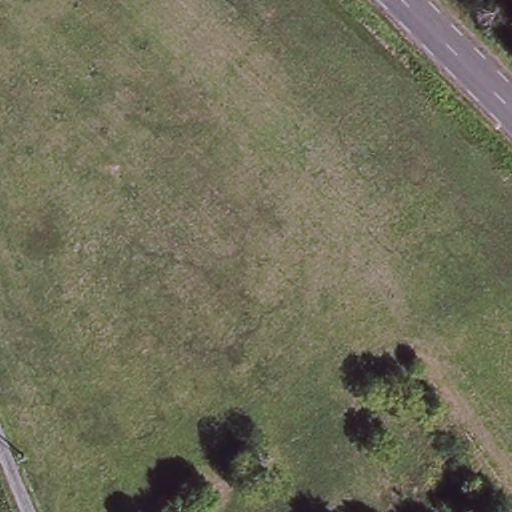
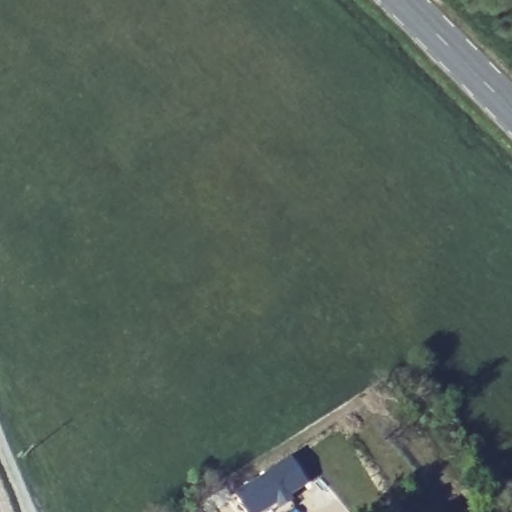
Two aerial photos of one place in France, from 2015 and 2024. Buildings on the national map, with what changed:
new [(286,458),(305,486),(267,512),(245,512),(233,492),(286,458)]

